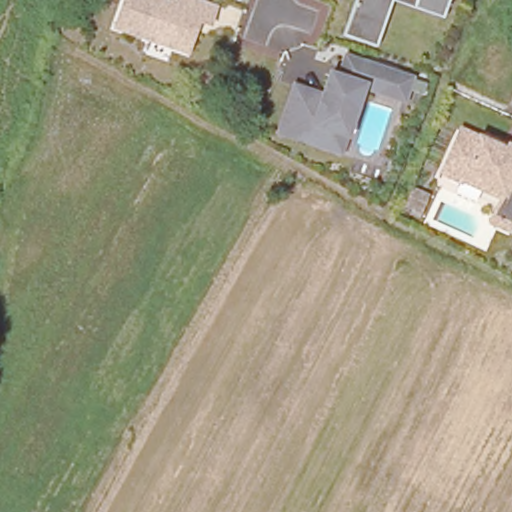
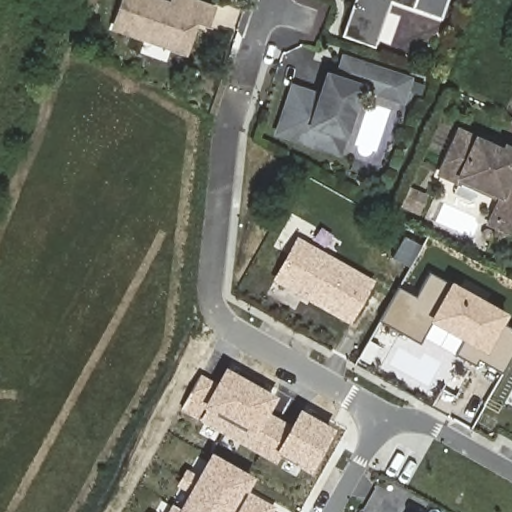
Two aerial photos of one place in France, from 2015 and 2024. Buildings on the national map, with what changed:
unchanged [(113,25),(122,0),(166,0),(171,2),(171,0),(199,0),(212,5),(207,20),(196,16),(192,27),(185,49),(113,25)]
unchanged [(339,35),(352,0),(389,0),(372,47),(363,44),(339,35)]
new [(390,0),(447,0),(441,18),(390,0)]
unchanged [(312,145),(276,132),(291,87),(319,96),(325,75),(335,79),(340,80),(343,70),(339,69),(342,57),(407,79),(400,101),(359,87),(352,107),(338,152),(312,145)]
unchanged [(498,211),(460,192),(441,183),(461,140),(477,147),(484,144),(492,147),(506,154),(512,156),(512,236),(509,241),(489,232),(493,222),(498,211)]
new [(376,281),(351,326),(273,282),(298,237),(376,281)]
new [(417,297),(430,273),(508,317),(504,325),(512,329),(512,357),(503,373),(479,360),(475,367),(423,337),(420,343),(379,320),(399,287),(417,297)]
new [(225,367),(278,396),(269,412),(291,425),(300,408),(335,429),(310,473),(280,456),(276,465),(200,421),(180,410),(200,374),(216,383),(225,367)]
new [(247,491),(275,507),(273,512),(168,512),(172,504),(179,508),(188,493),(175,486),(186,468),(198,475),(211,452),(255,477),(247,491)]

